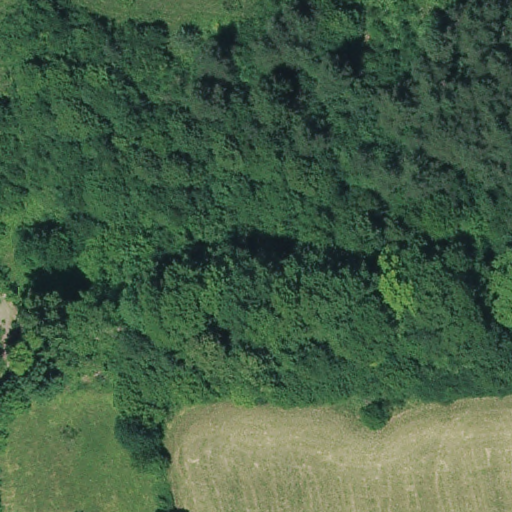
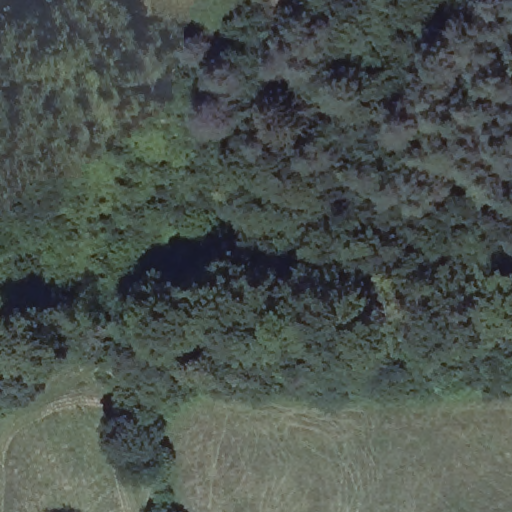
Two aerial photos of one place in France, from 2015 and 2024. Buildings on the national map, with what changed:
[]

